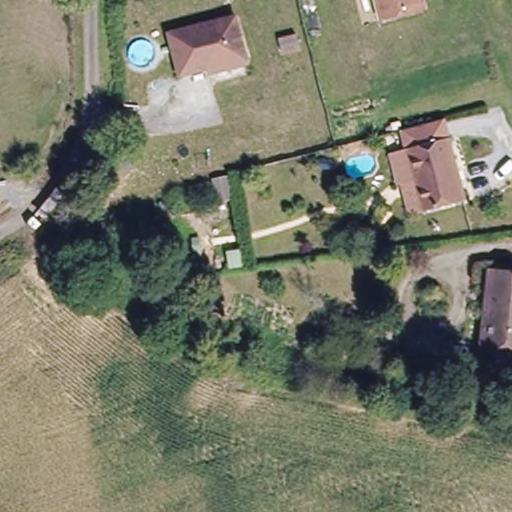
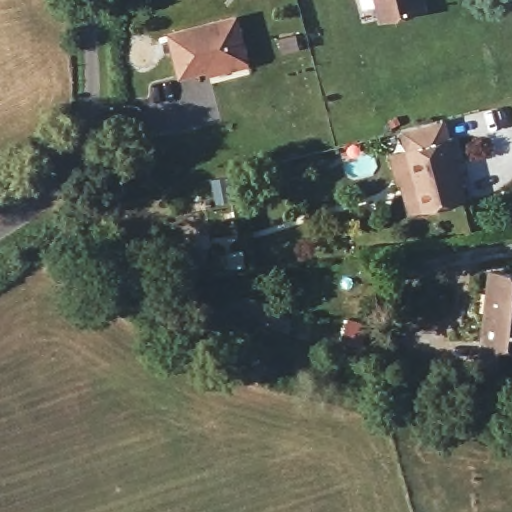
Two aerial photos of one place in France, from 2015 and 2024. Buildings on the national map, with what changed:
unchanged [(417,13),(379,22),(373,0),(414,0),(417,13)]
unchanged [(205,70),(178,78),(167,36),(234,20),(247,67),(225,72),(208,77),(205,70)]
unchanged [(300,42),(304,57),(285,61),(282,45),(300,42)]
unchanged [(465,200),(416,213),(408,181),(398,184),(391,159),(411,153),(404,128),(444,118),(465,200)]
unchanged [(234,180),(238,210),(219,214),(215,184),(234,180)]
unchanged [(248,257),(251,273),(231,276),(228,261),(248,257)]
unchanged [(476,374),(479,356),(485,309),(493,268),(503,270),(512,271),(512,350),(510,361),(507,380),(476,374)]
unchanged [(372,333),(367,354),(344,347),(352,327),(372,333)]

